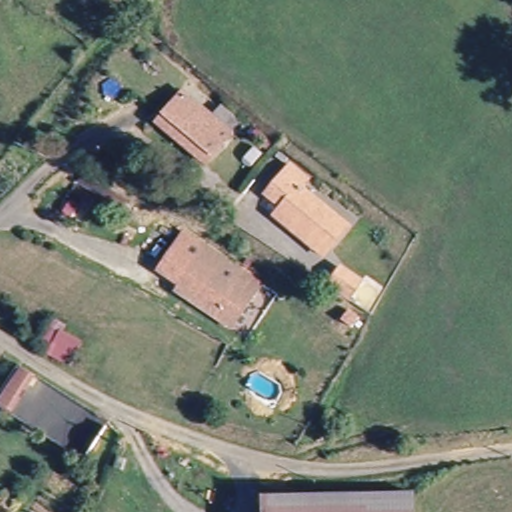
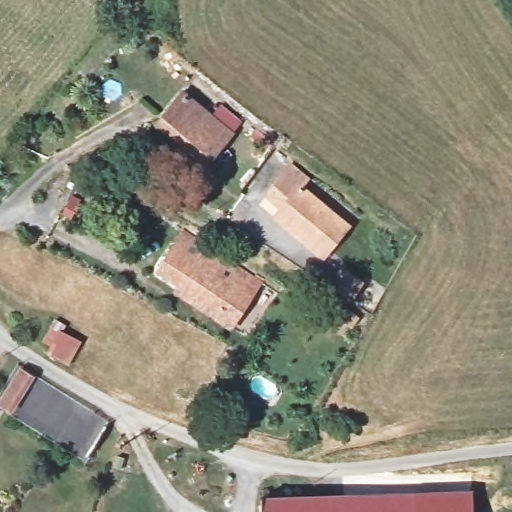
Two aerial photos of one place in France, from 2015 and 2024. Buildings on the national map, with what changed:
unchanged [(216,179),(161,136),(166,129),(191,99),(241,139),(217,169),(221,172),(216,179)]
unchanged [(268,228),(275,220),(283,209),(263,195),(287,162),(305,176),(298,187),(350,225),(325,257),(320,266),(268,228)]
unchanged [(172,305),(177,297),(154,282),(170,257),(179,244),(201,258),(256,292),(231,331),(226,339),(172,305)]
unchanged [(368,273),(387,286),(377,301),(357,290),(368,273)]
unchanged [(39,352),(50,326),(80,340),(66,361),(39,352)]
unchanged [(0,396),(17,367),(34,377),(11,413),(0,409),(0,396)]
new [(472,492),(473,512),(415,512),(415,495),(472,492)]
unchanged [(281,497),(415,495),(415,512),(265,512),(265,497),(281,497)]

